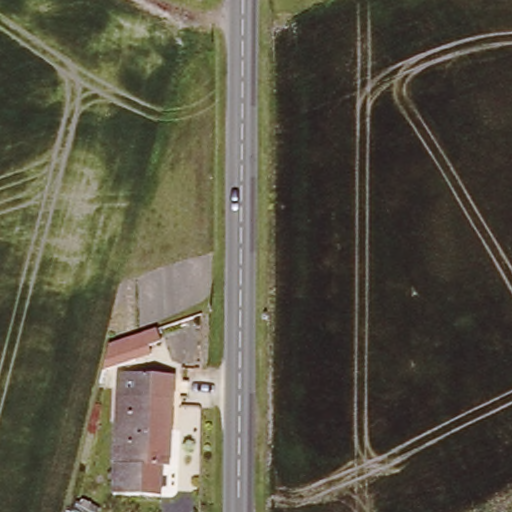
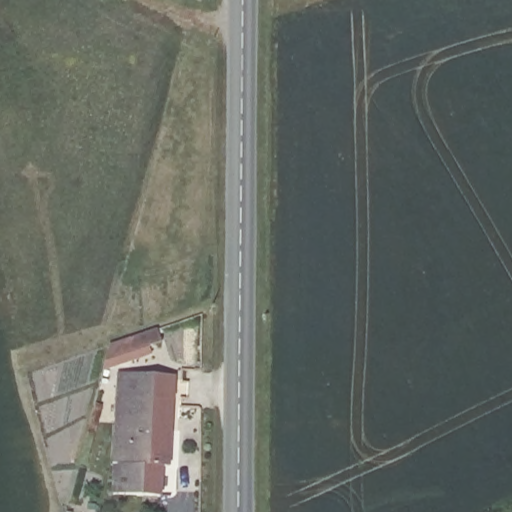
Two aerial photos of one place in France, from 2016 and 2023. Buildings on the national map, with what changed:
unchanged [(157,329),(162,342),(149,347),(152,353),(137,358),(135,354),(110,363),(108,344),(157,329)]
unchanged [(149,496),(110,493),(117,426),(120,400),(122,376),(177,380),(167,468),(162,468),(159,497),(149,496)]

